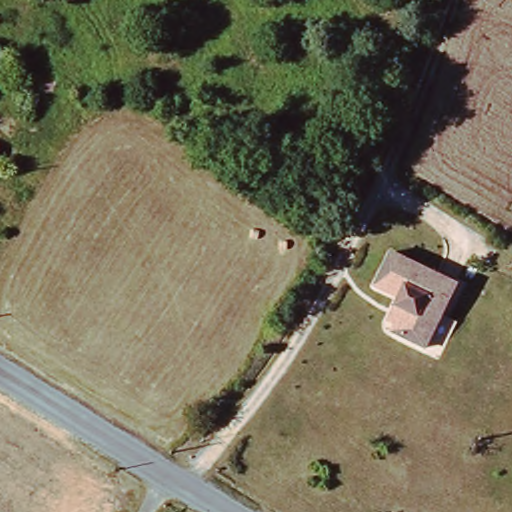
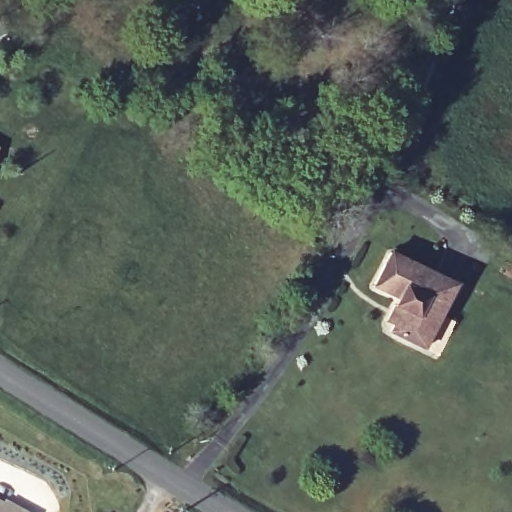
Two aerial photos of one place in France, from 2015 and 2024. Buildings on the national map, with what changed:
unchanged [(373,284),(390,249),(457,281),(425,347),(390,330),(402,308),(394,303),(398,295),(373,284)]
new [(4,503),(25,512),(0,512),(0,500),(4,503)]

